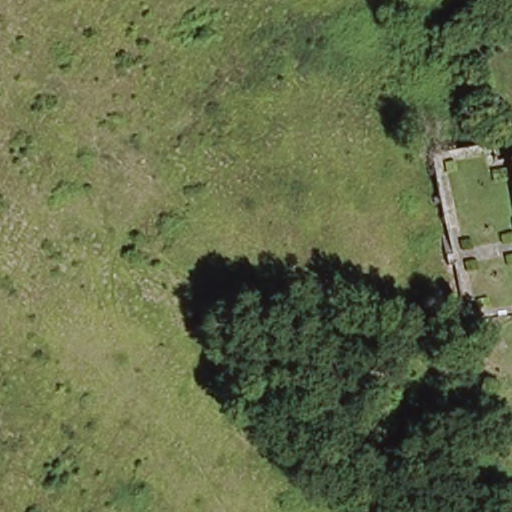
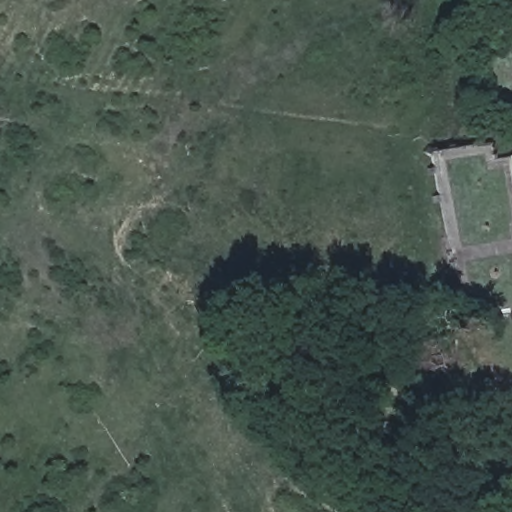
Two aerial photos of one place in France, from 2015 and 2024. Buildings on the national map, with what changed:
unchanged [(512,157),(512,177),(508,158),(512,157)]

